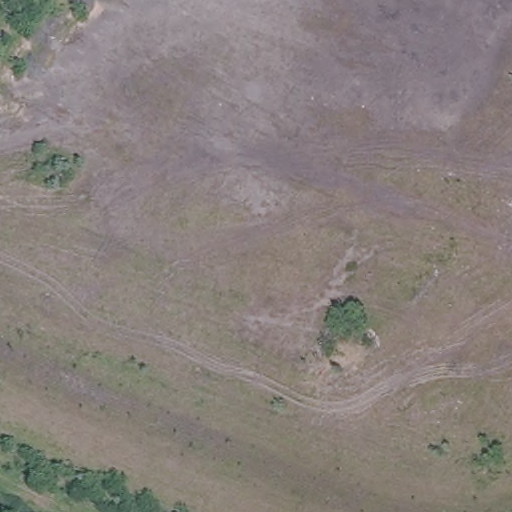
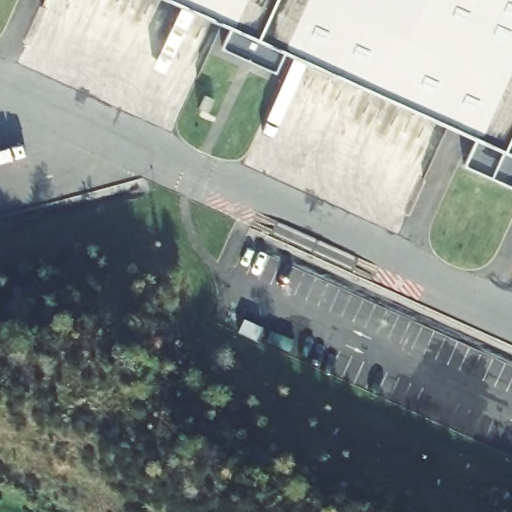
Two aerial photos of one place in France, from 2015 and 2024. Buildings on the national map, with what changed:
new [(150,0),(512,0),(512,166),(150,0)]

